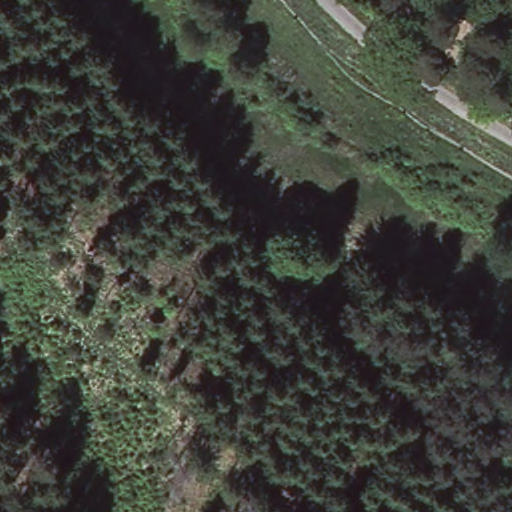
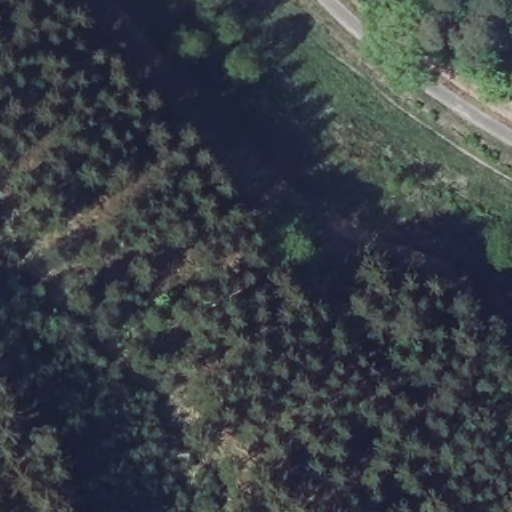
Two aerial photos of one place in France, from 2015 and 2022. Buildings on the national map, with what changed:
unchanged [(512,512),(503,512),(498,413),(512,413),(512,512)]

